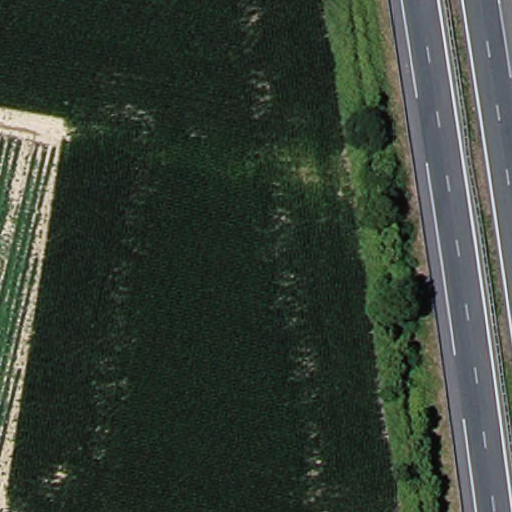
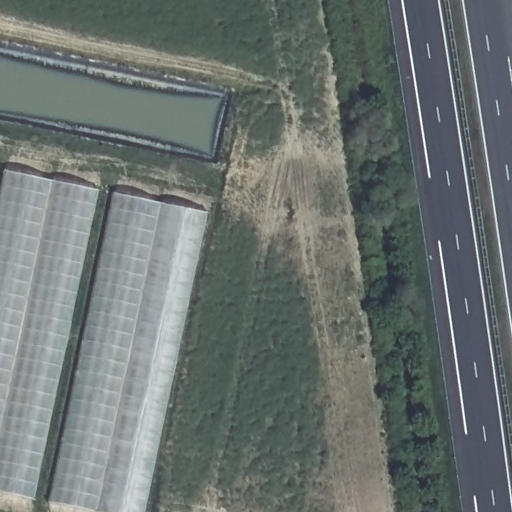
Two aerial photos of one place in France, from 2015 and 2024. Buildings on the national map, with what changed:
new [(9,172),(94,191),(34,498),(0,491),(0,214),(9,172)]
new [(206,213),(143,512),(99,512),(51,501),(117,196),(206,213)]

